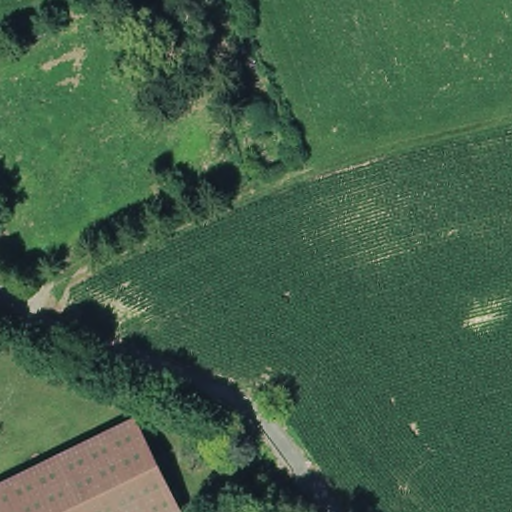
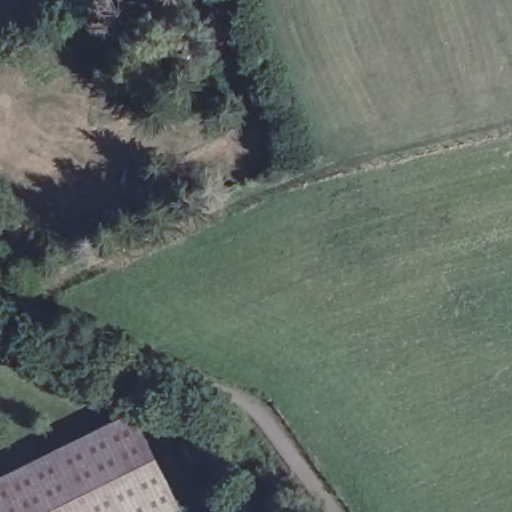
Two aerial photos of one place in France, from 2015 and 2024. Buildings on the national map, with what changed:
unchanged [(179,512),(0,512),(0,480),(138,413),(179,512)]
unchanged [(249,512),(245,512),(248,510),(249,512)]

